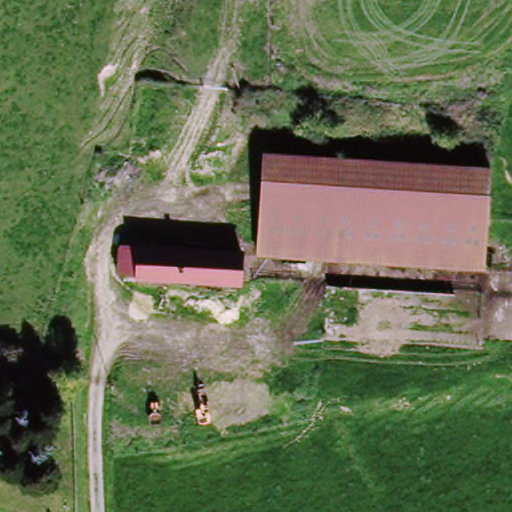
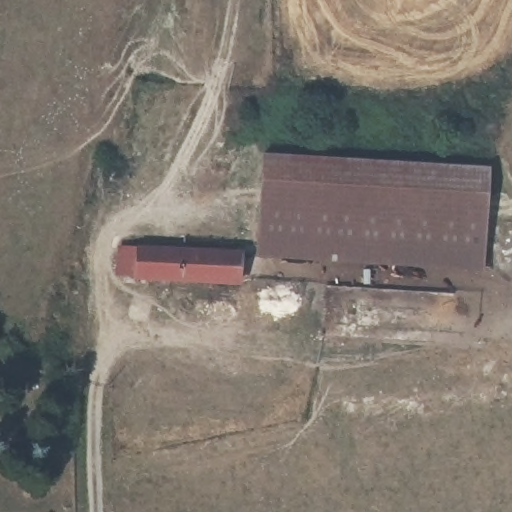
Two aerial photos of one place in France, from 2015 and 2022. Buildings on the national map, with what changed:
unchanged [(490,168),(484,272),(255,257),(262,153),(490,168)]
unchanged [(243,253),(240,286),(114,276),(117,247),(243,253)]

